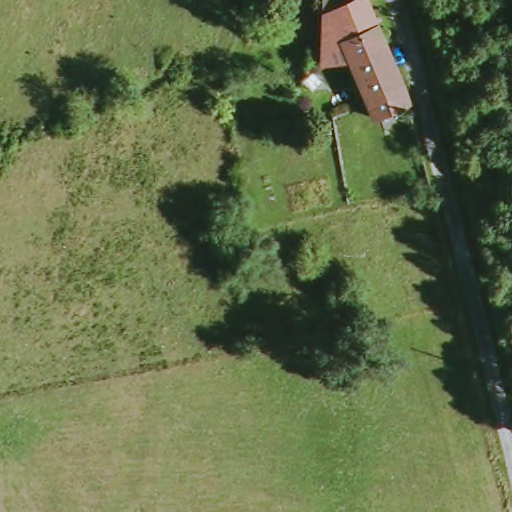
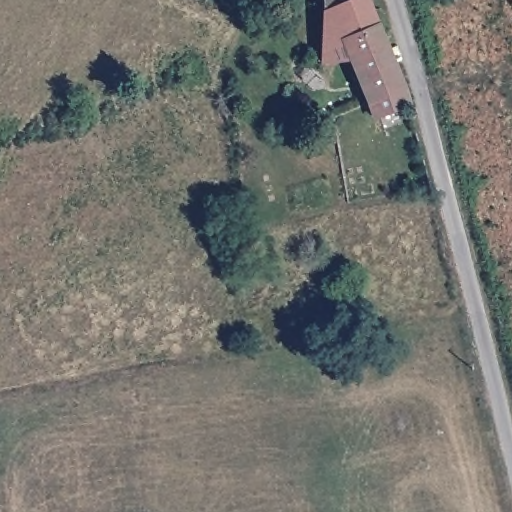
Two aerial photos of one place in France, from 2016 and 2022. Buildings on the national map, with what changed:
unchanged [(351,64),(323,66),(324,14),(324,0),(360,0),(330,11),(351,64)]
unchanged [(351,64),(330,11),(360,0),(367,0),(410,109),(375,123),(351,64)]

